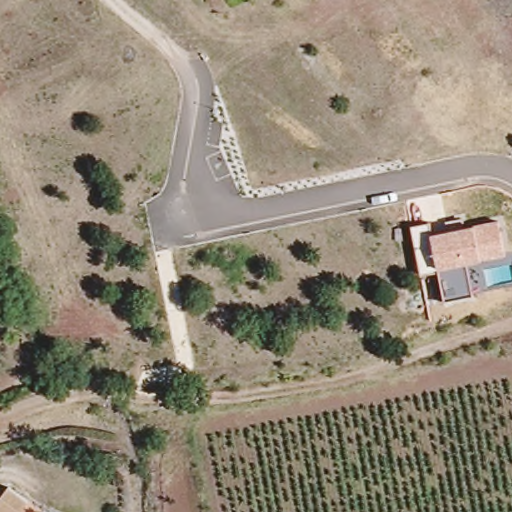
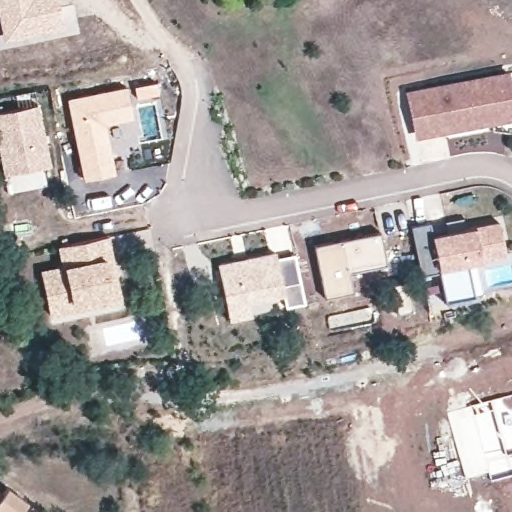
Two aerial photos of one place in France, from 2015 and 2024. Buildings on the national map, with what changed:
new [(64,29),(2,40),(0,33),(0,0),(59,0),(60,8),(64,29)]
new [(507,69),(512,93),(512,119),(414,139),(404,91),(507,69)]
new [(67,99),(125,88),(131,119),(106,125),(114,174),(82,179),(67,99)]
new [(0,172),(0,112),(38,104),(50,165),(1,174),(0,172)]
unchanged [(505,255),(482,259),(483,262),(467,264),(473,296),(445,302),(439,270),(421,274),(412,225),(430,223),(432,234),(450,230),(448,222),(464,219),(465,226),(475,225),(498,220),(505,255)]
new [(380,233),(386,264),(348,272),(352,288),(324,294),(315,245),(342,240),(380,233)]
new [(124,300),(75,309),(77,314),(49,319),(39,270),(61,267),(58,245),(105,236),(124,300)]
new [(275,252),(276,258),(293,254),(304,302),(285,306),(282,294),(248,303),(251,315),(228,319),(216,263),(275,252)]
new [(490,482),(487,474),(464,480),(445,412),(512,393),(512,476),(490,482)]
unchanged [(21,500),(14,512),(0,512),(0,487),(21,500)]

